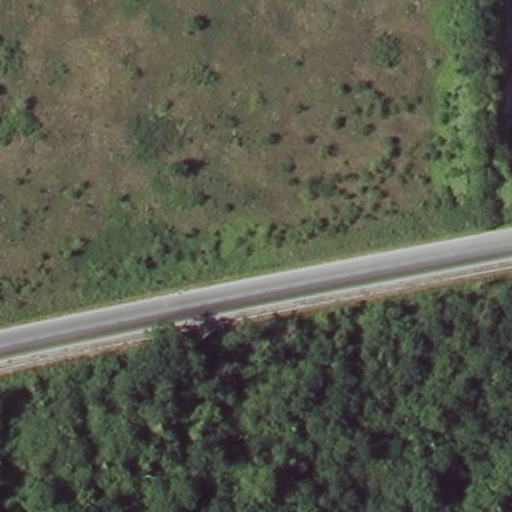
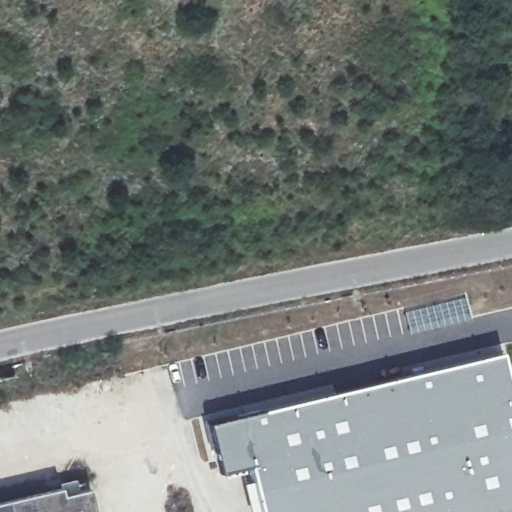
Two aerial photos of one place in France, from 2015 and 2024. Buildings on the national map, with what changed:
new [(501,350),(511,395),(512,395),(512,512),(255,512),(243,467),(216,473),(206,422),(266,406),(501,350)]
new [(73,478),(76,487),(87,485),(92,512),(0,512),(0,499),(33,491),(73,478)]

